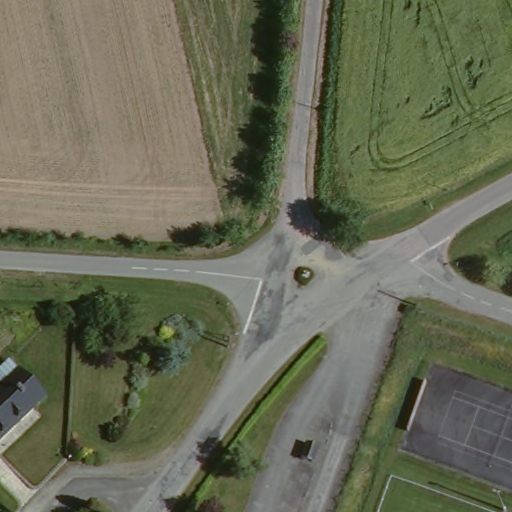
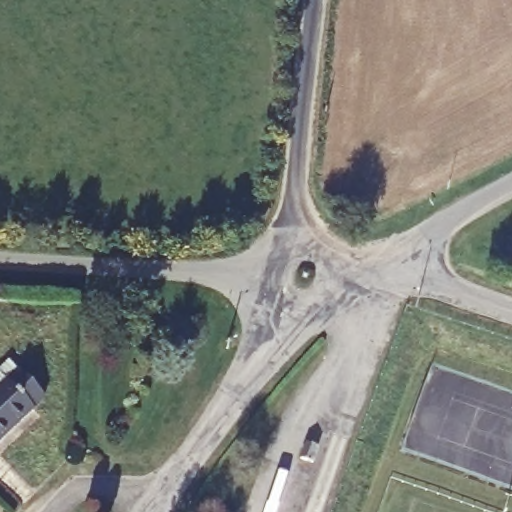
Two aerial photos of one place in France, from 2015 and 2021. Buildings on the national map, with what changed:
unchanged [(14,381),(0,395),(0,374),(3,371),(14,381)]
unchanged [(40,403),(0,444),(0,395),(14,381),(40,403)]
unchanged [(317,450),(331,454),(326,472),(312,468),(317,450)]

